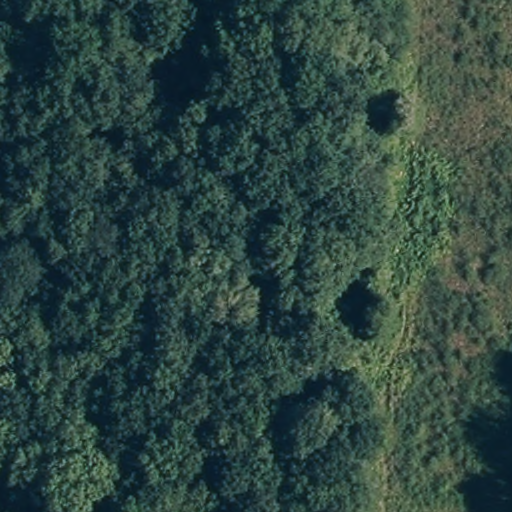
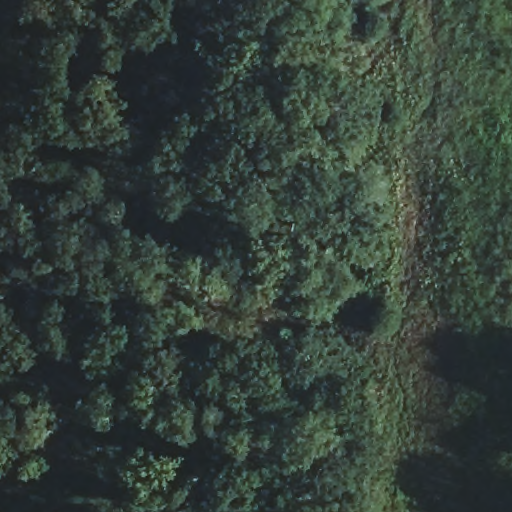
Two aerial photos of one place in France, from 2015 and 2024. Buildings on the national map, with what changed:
[]

